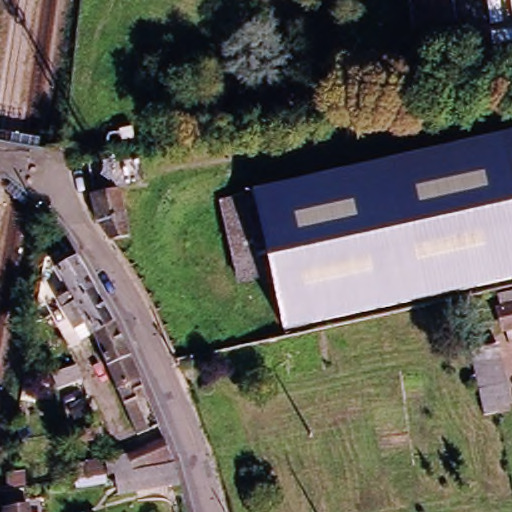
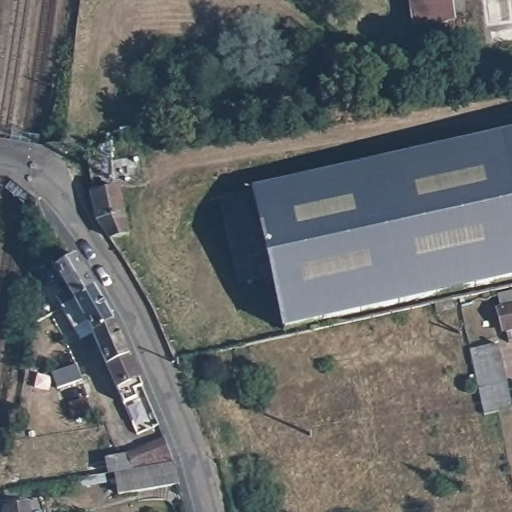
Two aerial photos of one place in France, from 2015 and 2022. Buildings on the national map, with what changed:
unchanged [(452,25),(409,31),(405,0),(448,0),(452,25)]
unchanged [(284,335),(272,289),(237,297),(219,214),(512,147),(512,282),(284,335)]
unchanged [(96,229),(95,229),(92,224),(88,200),(113,195),(122,240),(106,244),(96,229)]
unchanged [(125,400),(110,365),(95,331),(90,322),(75,330),(62,309),(58,301),(67,296),(61,286),(68,283),(58,266),(77,256),(97,289),(116,321),(131,357),(143,385),(134,388),(137,395),(135,397),(147,430),(138,434),(125,400)]
unchanged [(511,353),(508,341),(505,324),(498,326),(496,319),(511,316),(509,306),(512,305),(512,353),(511,353)]
unchanged [(509,405),(495,409),(495,416),(482,418),(469,352),(482,350),(497,347),(509,405)]
unchanged [(81,377),(82,379),(75,381),(60,387),(55,371),(76,364),(81,377)]
unchanged [(115,493),(112,475),(115,474),(132,471),(125,455),(137,450),(161,440),(167,454),(170,465),(174,484),(115,493)]
unchanged [(5,512),(5,510),(29,505),(30,512),(5,512)]

